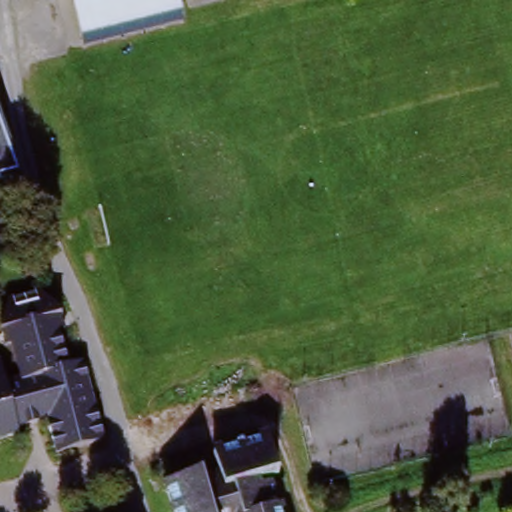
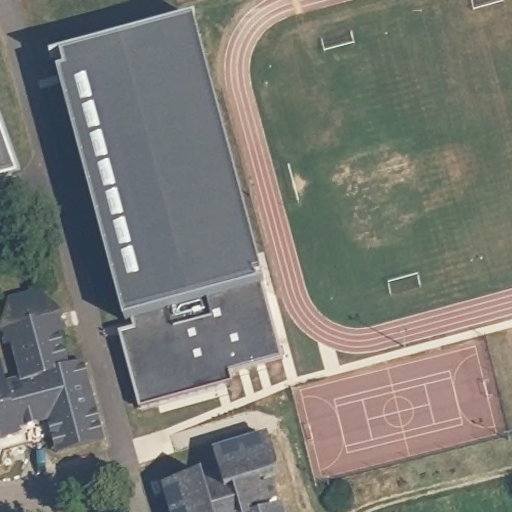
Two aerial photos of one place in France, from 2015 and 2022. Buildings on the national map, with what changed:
demolished [(78,41),(68,0),(176,0),(180,15),(78,41)]
new [(249,290),(178,25),(191,21),(262,286),(249,290)]
new [(281,360),(230,375),(232,381),(139,406),(119,335),(133,331),(60,56),(178,25),(249,290),(261,286),(281,360)]
unchanged [(18,170),(0,174),(0,121),(18,170)]
unchanged [(19,428),(20,435),(0,441),(0,363),(1,362),(6,382),(21,379),(13,345),(4,347),(0,333),(13,299),(41,292),(63,315),(66,331),(58,333),(68,367),(85,362),(105,441),(58,452),(50,420),(19,428)]
unchanged [(280,512),(172,512),(164,485),(199,474),(201,480),(218,475),(213,456),(266,440),(278,476),(259,482),(259,487),(271,485),(276,502),(267,505),(269,511),(279,508),(280,512)]

